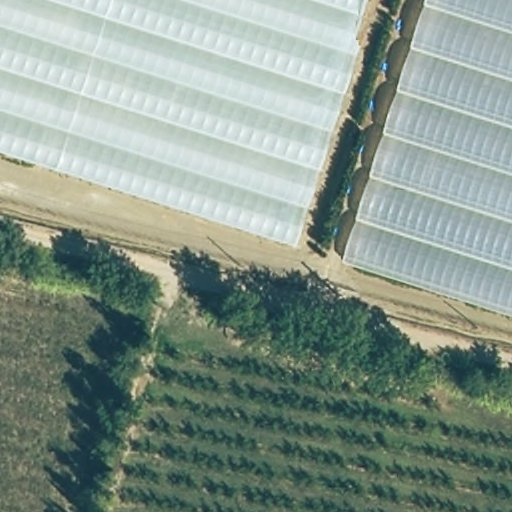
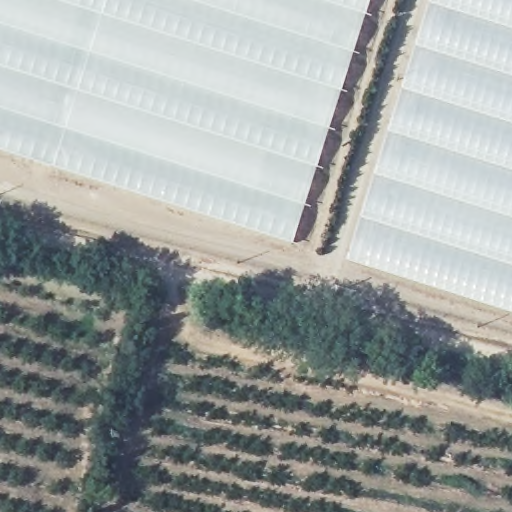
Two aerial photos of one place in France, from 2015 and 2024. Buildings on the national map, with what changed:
unchanged [(0,147),(0,0),(369,0),(294,234),(0,147)]
unchanged [(512,0),(512,316),(344,264),(428,0),(512,0)]

